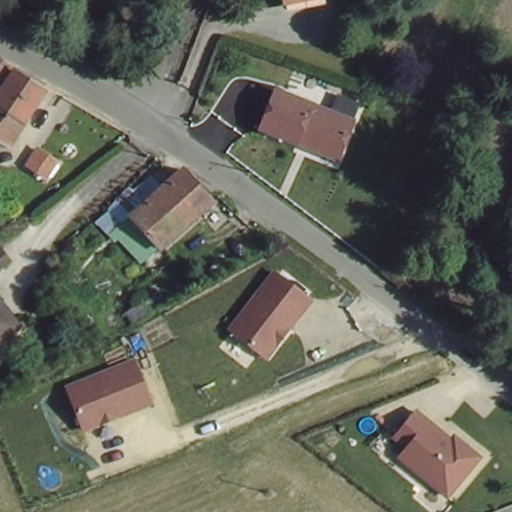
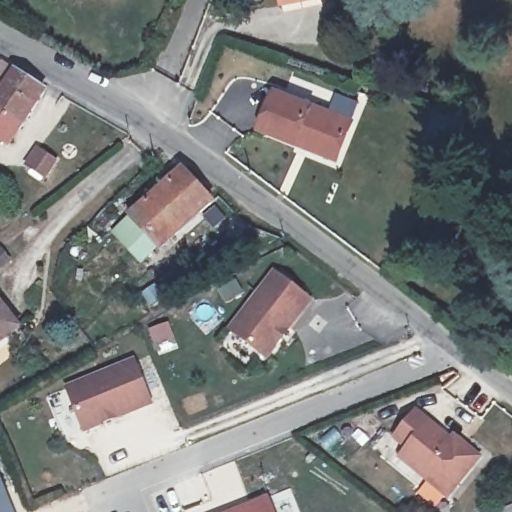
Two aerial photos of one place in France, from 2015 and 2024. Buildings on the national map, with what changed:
unchanged [(304,0),(290,4),(289,0),(304,0)]
unchanged [(12,155),(0,147),(0,58),(49,90),(12,155)]
unchanged [(291,147),(256,131),(275,91),(353,125),(338,160),(335,166),(291,147)]
unchanged [(36,139),(54,154),(41,169),(24,152),(36,139)]
unchanged [(216,200),(159,252),(128,220),(184,170),(216,200)]
unchanged [(0,241),(10,254),(0,261),(0,241)]
unchanged [(314,298),(269,361),(229,330),(276,271),(314,298)]
unchanged [(0,342),(0,300),(21,326),(0,342)]
unchanged [(85,433),(68,385),(135,359),(153,405),(85,433)]
unchanged [(400,440),(384,430),(405,402),(478,453),(445,492),(392,450),(400,440)]
new [(0,476),(14,512),(0,512),(0,476)]
new [(268,496),(274,512),(227,512),(268,496)]

